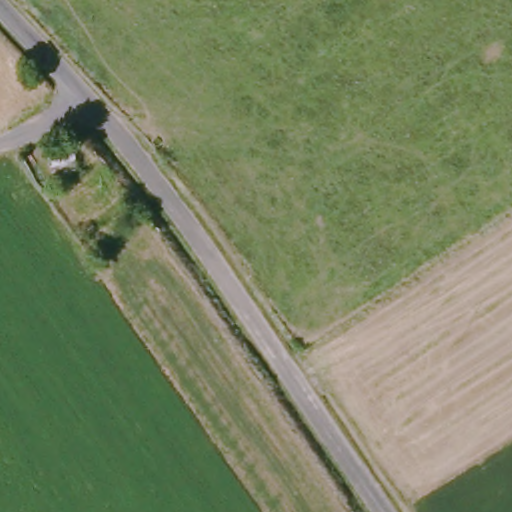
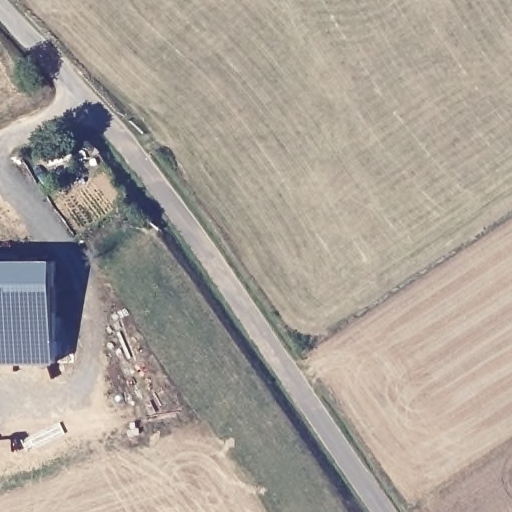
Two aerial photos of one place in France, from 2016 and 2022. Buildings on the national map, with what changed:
new [(56,363),(0,363),(0,262),(55,261),(56,363)]

